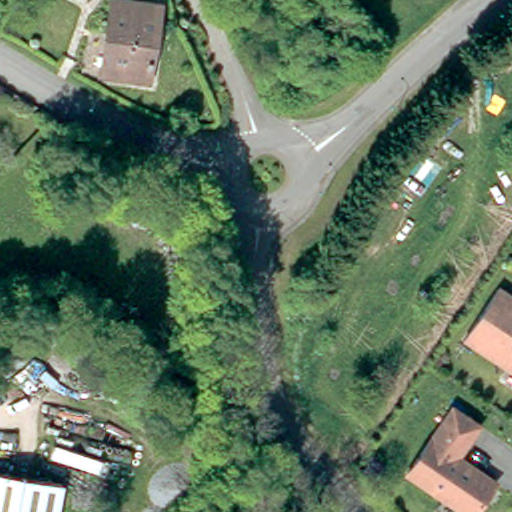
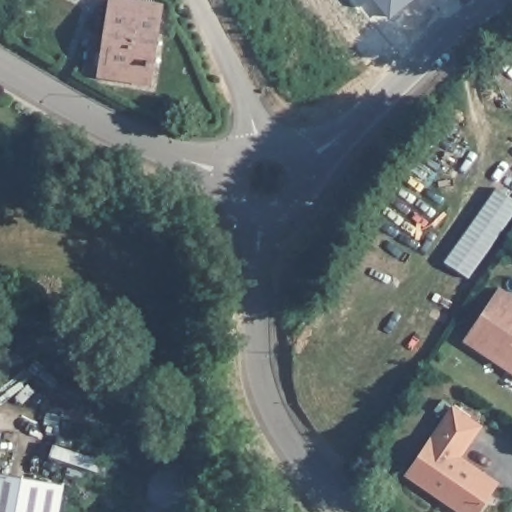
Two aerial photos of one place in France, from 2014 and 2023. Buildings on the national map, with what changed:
unchanged [(116,0),(159,6),(148,81),(108,75),(101,74),(108,33),(112,0),(116,0)]
new [(353,0),(369,0),(359,8),(353,0)]
new [(375,0),(412,0),(391,18),(375,0)]
new [(512,199),(512,215),(469,278),(444,261),(496,188),(512,199)]
unchanged [(512,297),(512,372),(465,340),(499,289),(512,297)]
unchanged [(480,421),(459,452),(497,478),(474,512),(468,512),(407,470),(453,403),(480,421)]
unchanged [(57,512),(0,512),(0,474),(62,485),(57,512)]

